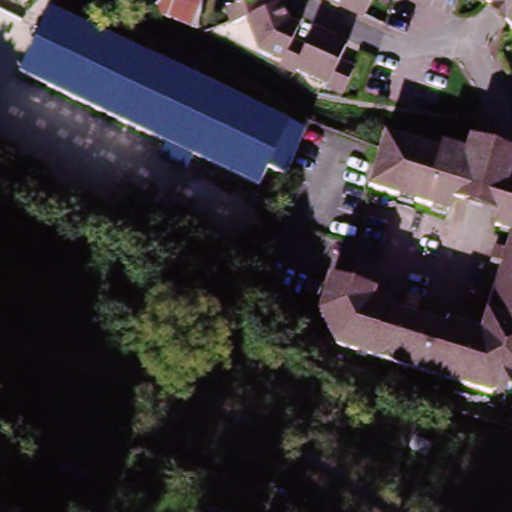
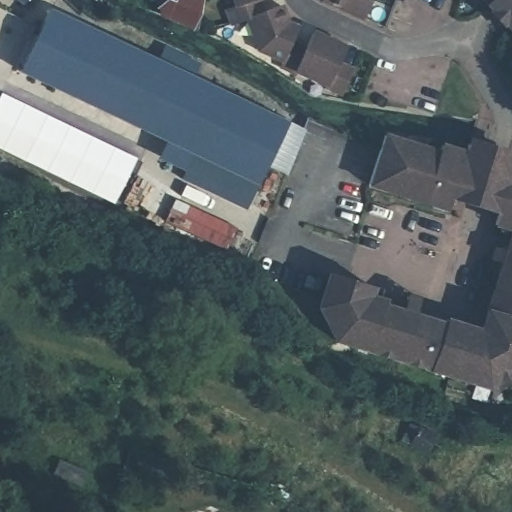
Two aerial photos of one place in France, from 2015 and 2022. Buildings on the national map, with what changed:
unchanged [(17,0),(20,0),(18,1),(17,0)]
unchanged [(162,22),(167,0),(203,0),(196,35),(162,22)]
unchanged [(329,90),(295,76),(294,79),(280,72),(282,65),(274,61),(258,55),(247,24),(230,30),(225,15),(233,11),(230,0),(266,0),(255,4),(260,19),(278,12),(282,25),(283,30),(295,35),(290,49),(304,55),(310,40),(344,55),(338,69),(352,75),(342,100),(328,94),(329,90)]
unchanged [(325,2),(324,0),(375,0),(365,20),(325,2)]
unchanged [(482,10),(473,0),(512,0),(512,40),(482,10)]
unchanged [(285,173),(265,166),(259,182),(18,70),(43,12),(135,54),(296,128),(300,130),(285,173)]
new [(45,116),(134,155),(118,209),(24,165),(45,116)]
unchanged [(490,148),(512,156),(512,229),(497,224),(502,208),(455,192),(450,209),(371,184),(375,170),(385,135),(385,134),(432,149),(430,155),(463,166),(471,142),(490,148)]
unchanged [(493,390),(340,341),(322,307),(333,275),(375,287),(370,303),(482,339),(505,267),(512,265),(512,380),(493,390)]
unchanged [(413,437),(407,433),(411,426),(417,429),(418,427),(435,437),(425,455),(409,445),(413,437)]

